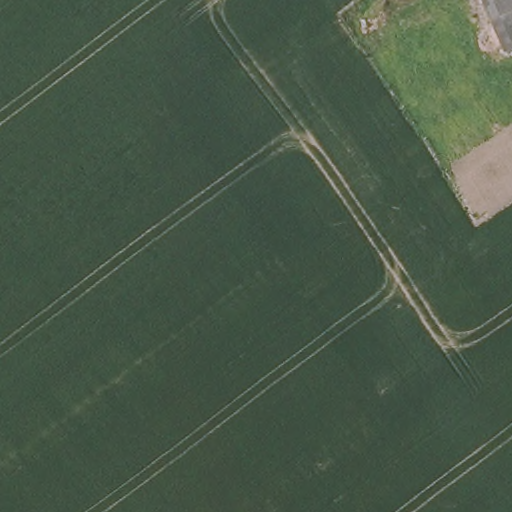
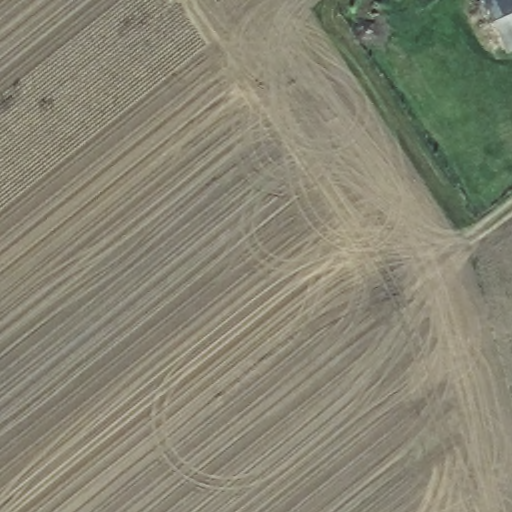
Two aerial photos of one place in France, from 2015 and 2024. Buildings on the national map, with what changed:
unchanged [(512,0),(512,44),(490,0),(512,0)]

